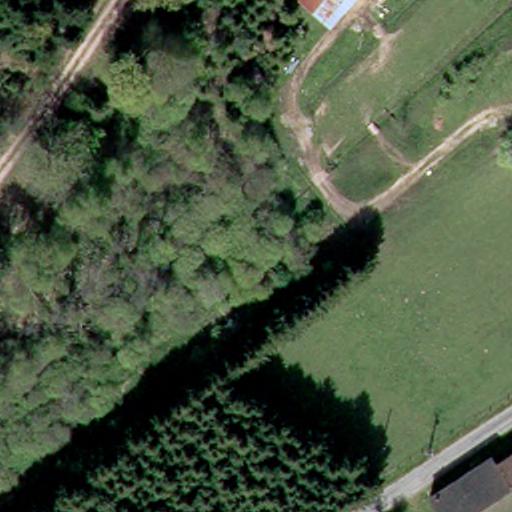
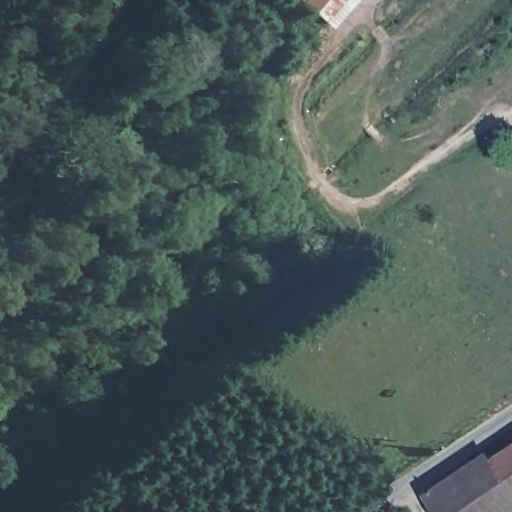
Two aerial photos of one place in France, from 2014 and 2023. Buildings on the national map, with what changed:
unchanged [(293,0),(350,0),(327,26),(293,0)]
unchanged [(503,459),(512,453),(512,512),(441,512),(431,495),(498,453),(503,459)]

